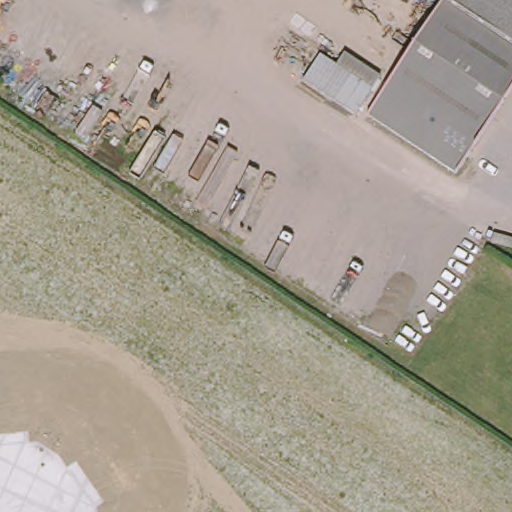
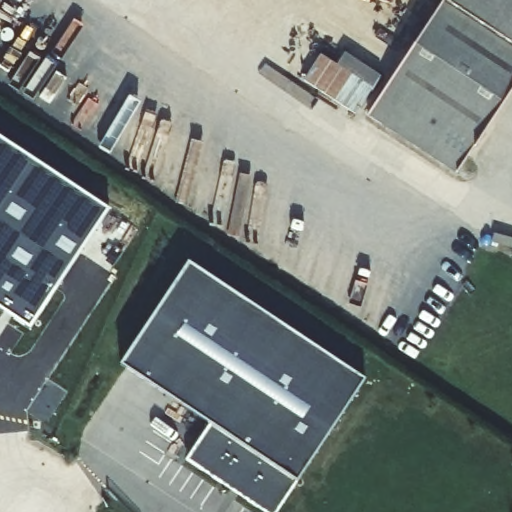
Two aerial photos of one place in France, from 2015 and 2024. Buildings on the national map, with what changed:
unchanged [(447,1),(446,0),(512,0),(512,44),(447,1)]
unchanged [(461,174),(372,116),(447,1),(512,44),(512,98),(461,174)]
new [(304,81),(320,54),(337,65),(345,53),(381,76),(356,115),(304,81)]
new [(0,137),(110,210),(31,330),(0,309),(0,137)]
new [(285,512),(262,512),(191,462),(214,432),(126,369),(191,272),(366,383),(285,512)]

